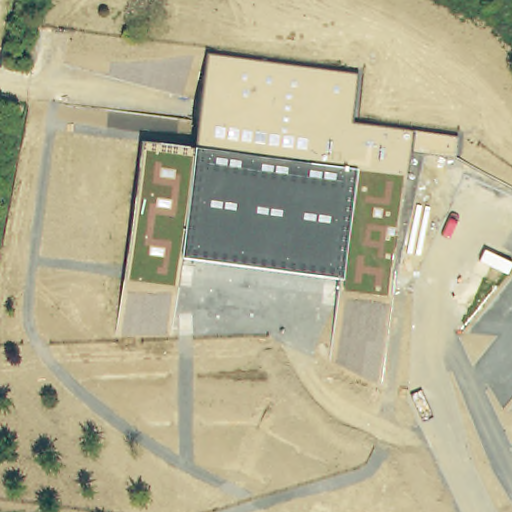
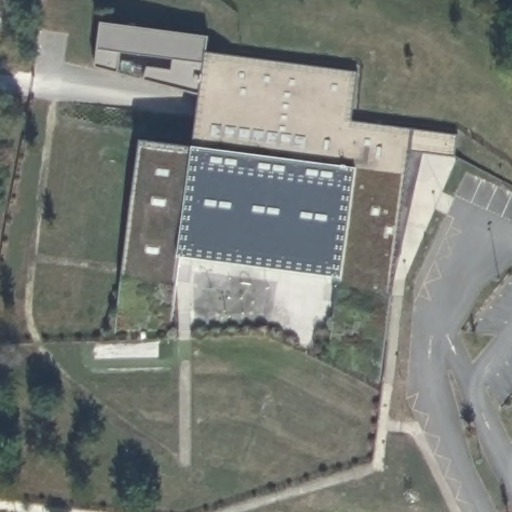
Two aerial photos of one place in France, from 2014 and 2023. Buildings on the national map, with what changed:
new [(96,67),(101,24),(209,37),(207,54),(201,94),(96,67)]
unchanged [(339,279),(179,258),(176,286),(121,280),(139,140),(193,146),(207,54),(355,74),(350,121),(454,135),(452,156),(421,153),(389,296),(337,290),(339,279)]

